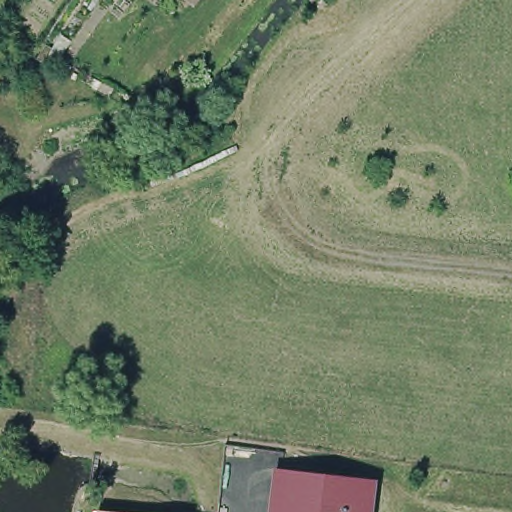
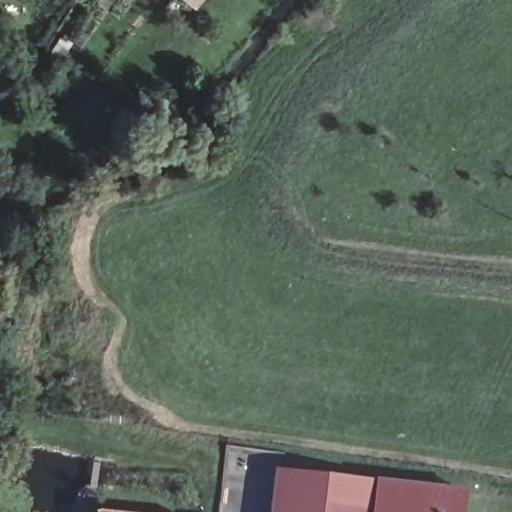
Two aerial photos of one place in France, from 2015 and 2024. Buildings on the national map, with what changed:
unchanged [(182,0),(195,0),(190,6),(182,0)]
unchanged [(278,469),(377,481),(373,512),(274,512),(278,469)]
new [(468,490),(466,512),(374,512),(377,481),(468,490)]

